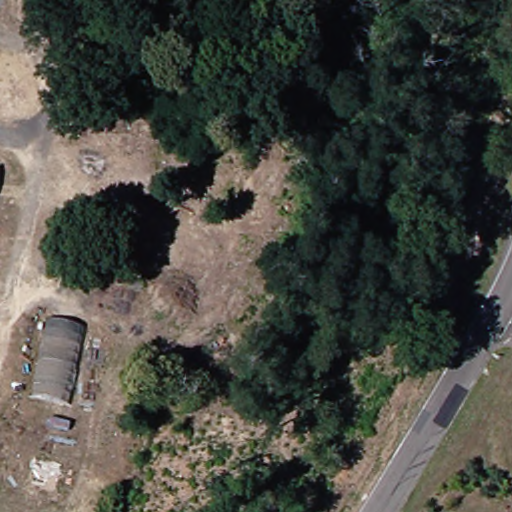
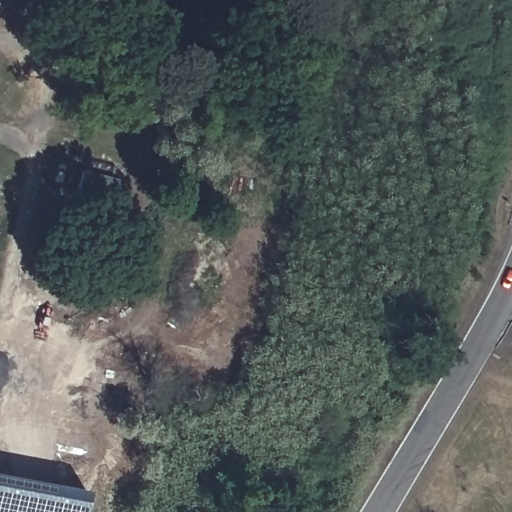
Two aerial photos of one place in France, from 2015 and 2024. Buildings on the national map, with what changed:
demolished [(51,318),(86,325),(71,402),(34,397),(51,318)]
new [(86,492),(83,512),(0,512),(0,475),(86,492)]

